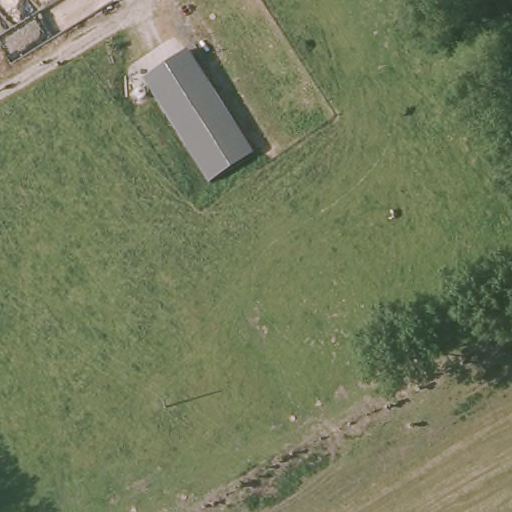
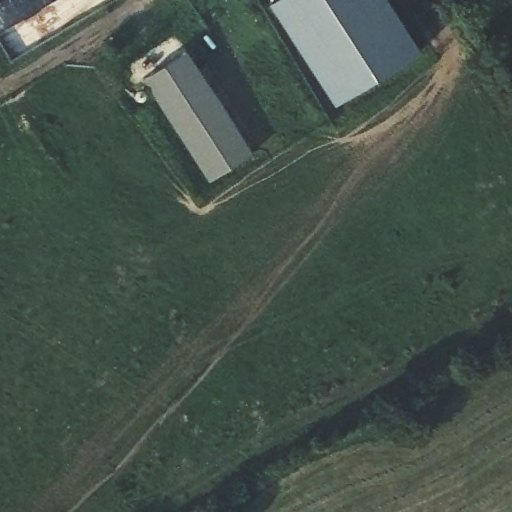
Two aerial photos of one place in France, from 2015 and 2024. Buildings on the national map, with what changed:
new [(292,0),(392,0),(428,58),(342,110),(280,7),(292,0)]
unchanged [(260,148),(220,178),(150,77),(190,46),(260,148)]

